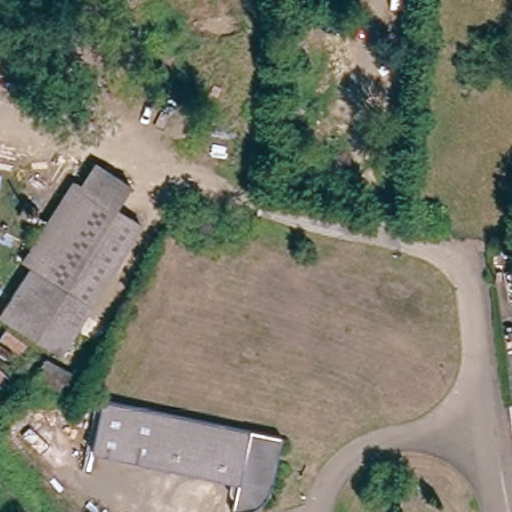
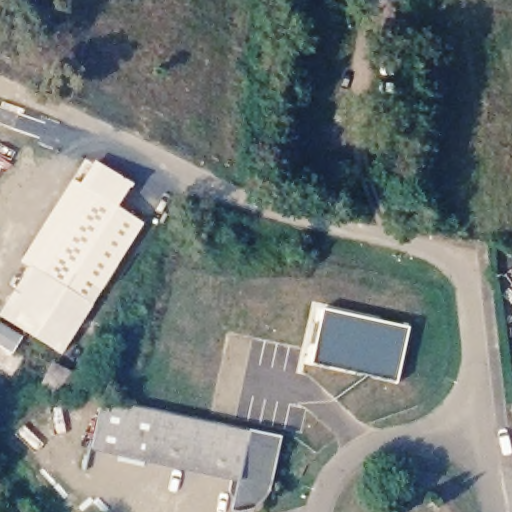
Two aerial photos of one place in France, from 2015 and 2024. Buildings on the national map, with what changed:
unchanged [(99,163),(139,188),(122,212),(84,187),(99,163)]
unchanged [(84,187),(122,212),(145,226),(96,303),(34,266),(28,262),(79,183),(84,187)]
unchanged [(96,303),(65,351),(3,314),(34,266),(96,303)]
new [(323,308),(410,326),(398,383),(312,364),(323,308)]
unchanged [(53,365),(79,380),(69,398),(42,386),(53,365)]
unchanged [(124,456),(92,450),(104,398),(134,406),(124,456)]
unchanged [(269,495),(264,501),(260,505),(257,508),(256,508),(252,510),(247,512),(233,512),(239,481),(124,456),(134,406),(282,438),(271,488),(269,495)]

